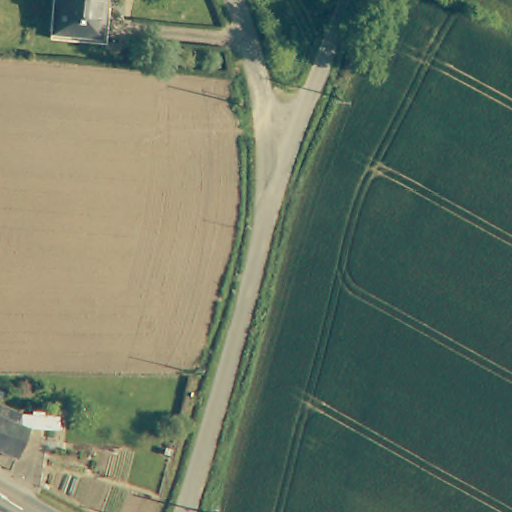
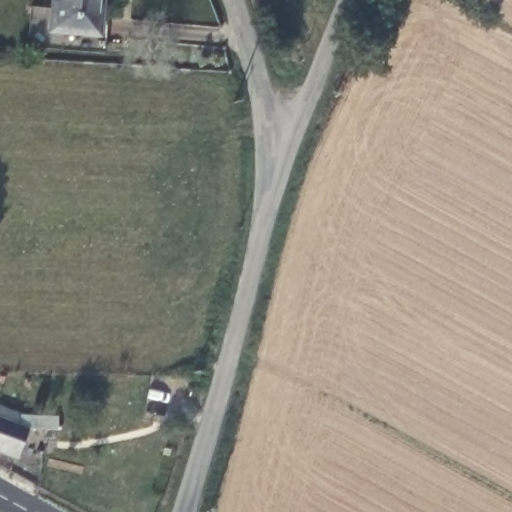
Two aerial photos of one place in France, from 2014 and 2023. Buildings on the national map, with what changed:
unchanged [(101,34),(52,30),(54,0),(103,0),(101,34)]
unchanged [(19,411),(59,413),(58,430),(30,428),(19,460),(0,451),(0,415),(15,422),(19,411)]

